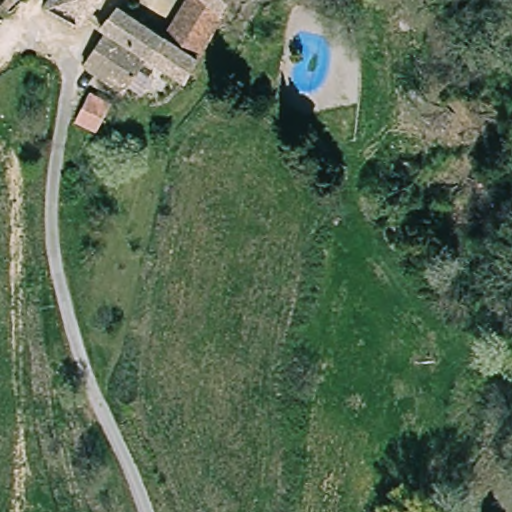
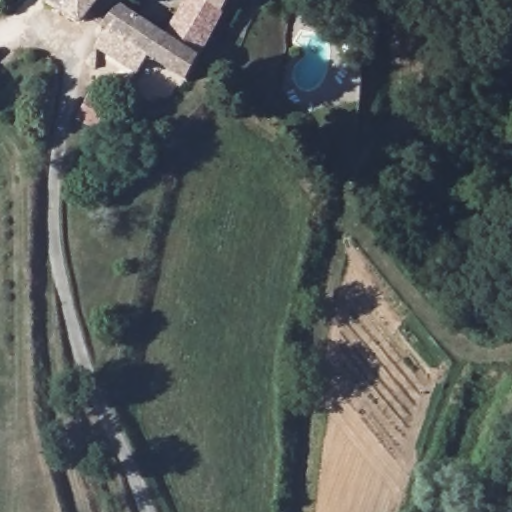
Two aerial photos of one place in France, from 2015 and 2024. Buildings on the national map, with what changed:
unchanged [(82,20),(50,0),(99,0),(82,20)]
unchanged [(200,55),(166,33),(185,0),(207,0),(223,13),(200,55)]
unchanged [(207,0),(231,0),(223,13),(207,0)]
unchanged [(186,79),(150,57),(128,89),(111,77),(117,68),(90,50),(103,28),(99,24),(120,1),(166,33),(200,55),(186,79)]
unchanged [(112,102),(95,128),(73,113),(90,87),(112,102)]

